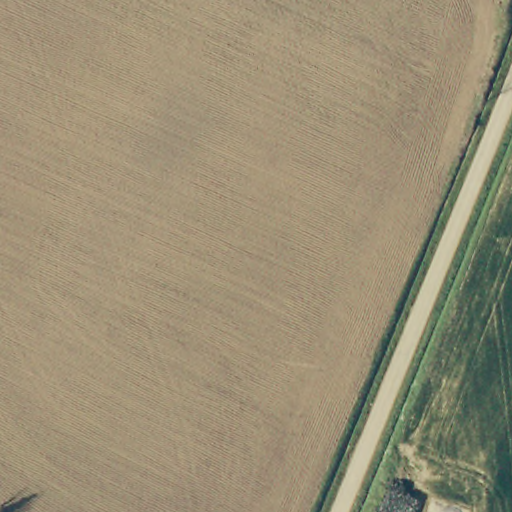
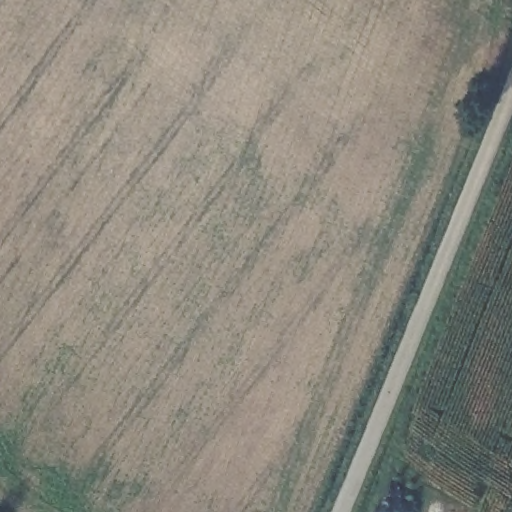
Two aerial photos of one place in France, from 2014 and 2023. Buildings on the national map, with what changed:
[]

